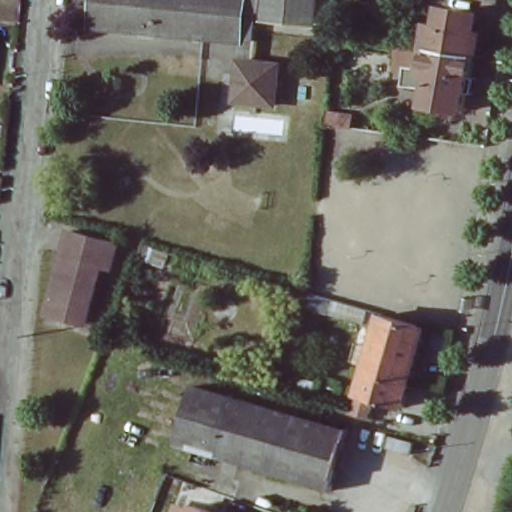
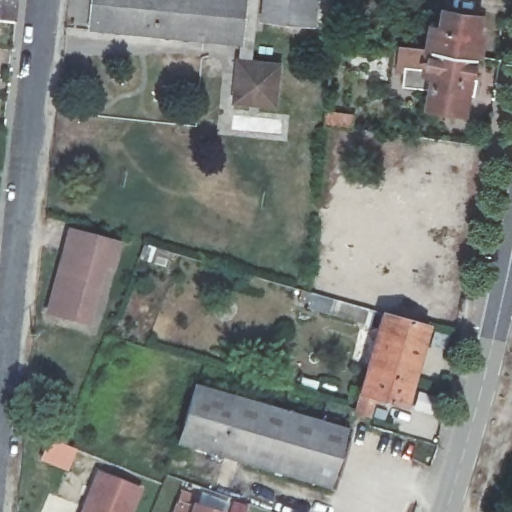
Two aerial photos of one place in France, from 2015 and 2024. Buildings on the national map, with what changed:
unchanged [(242,43),(90,28),(93,0),(260,0),(255,56),(241,55),(242,43)]
unchanged [(261,20),(263,0),(314,0),(312,26),(261,20)]
unchanged [(432,42),(435,19),(440,20),(441,5),(476,10),(475,23),(482,24),(478,47),(432,42)]
unchanged [(478,47),(473,103),(436,99),(438,84),(409,81),(412,60),(402,59),(404,39),(432,42),(478,47)]
unchanged [(255,56),(284,59),(280,106),(234,101),(238,55),(241,55),(255,56)]
unchanged [(327,115),(352,118),(351,133),(325,131),(327,115)]
unchanged [(112,269),(103,267),(87,324),(47,313),(69,232),(118,245),(112,269)]
unchanged [(365,369),(381,316),(425,330),(410,382),(365,369)]
unchanged [(403,407),(372,397),(368,411),(354,407),(355,400),(365,369),(410,382),(403,407)]
unchanged [(227,454),(174,439),(192,382),(231,393),(348,427),(332,485),(243,459),(227,454)]
new [(98,472),(138,488),(129,512),(82,512),(98,472)]
unchanged [(190,508),(192,503),(219,512),(172,512),(176,504),(190,508)]

